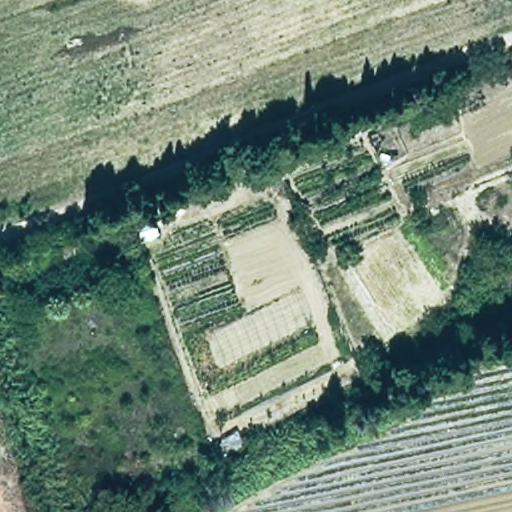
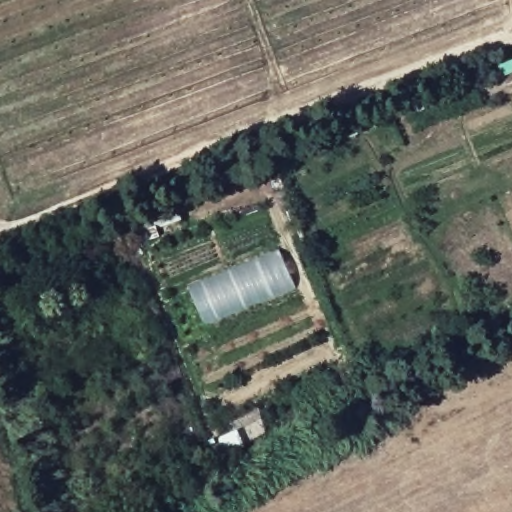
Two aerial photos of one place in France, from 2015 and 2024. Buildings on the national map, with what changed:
new [(295,287),(204,326),(187,287),(278,251),(295,287)]

